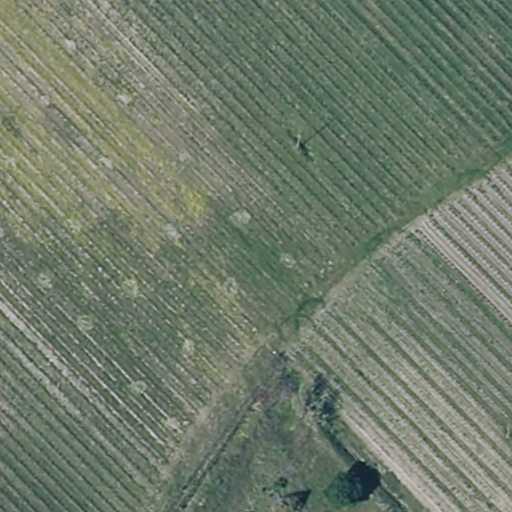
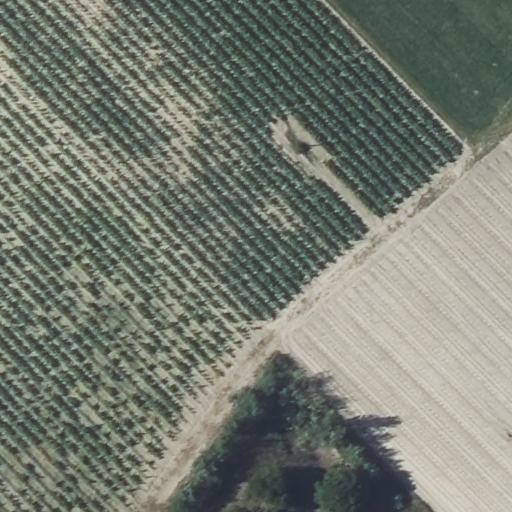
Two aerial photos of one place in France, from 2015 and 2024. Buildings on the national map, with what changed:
[]

